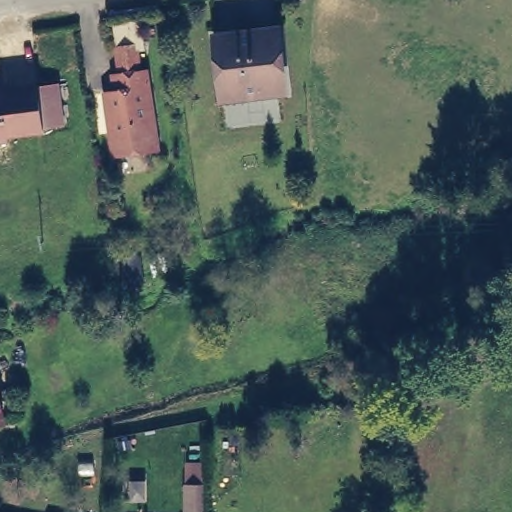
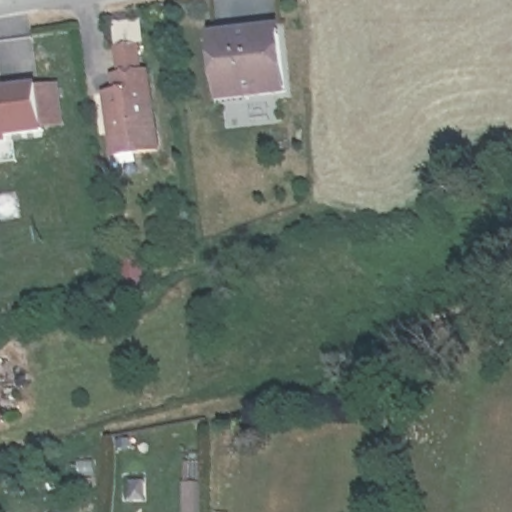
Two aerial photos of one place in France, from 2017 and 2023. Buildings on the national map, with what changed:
unchanged [(223,97),(216,36),(253,32),(278,30),(279,36),(284,91),(223,97)]
unchanged [(166,154),(121,160),(118,138),(113,98),(118,97),(124,96),(121,80),(128,79),(124,52),(145,49),(149,77),(156,76),(166,154)]
unchanged [(1,98),(0,93),(38,88),(43,133),(7,138),(8,143),(0,144),(0,98),(1,98)]
unchanged [(4,421),(0,423),(0,408),(4,421)]
unchanged [(203,488),(203,512),(187,512),(186,490),(203,488)]

